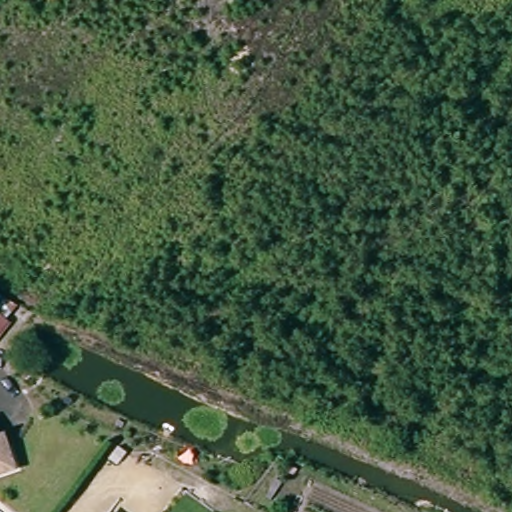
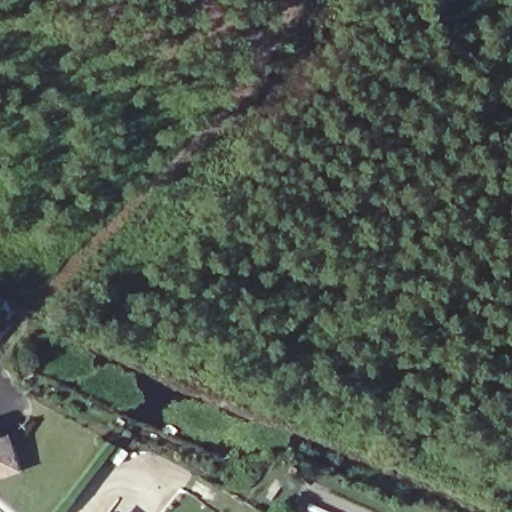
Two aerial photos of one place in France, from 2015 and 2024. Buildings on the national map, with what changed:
unchanged [(17,471),(0,479),(0,443),(5,441),(17,471)]

